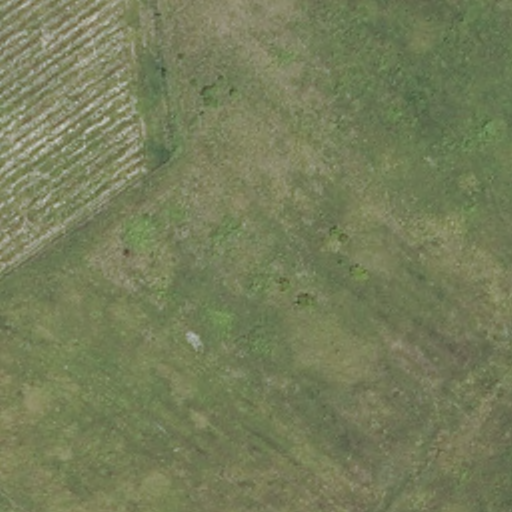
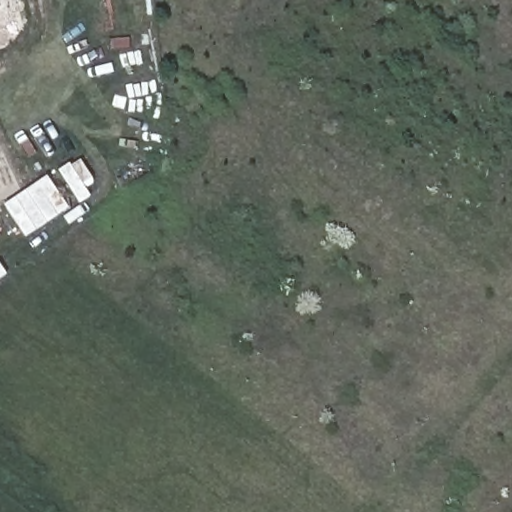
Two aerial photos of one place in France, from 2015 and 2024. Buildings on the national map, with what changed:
new [(70,208),(26,237),(4,204),(48,175),(70,208)]

